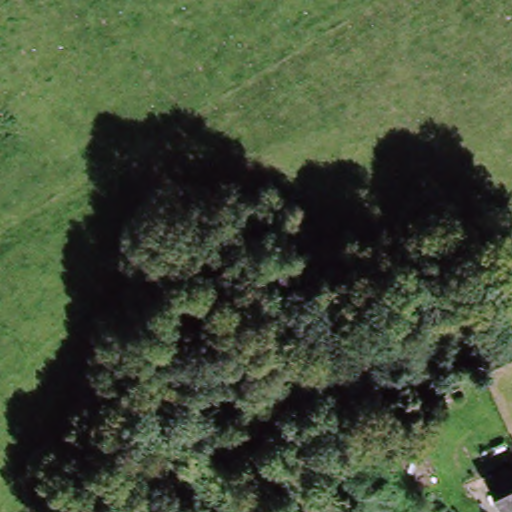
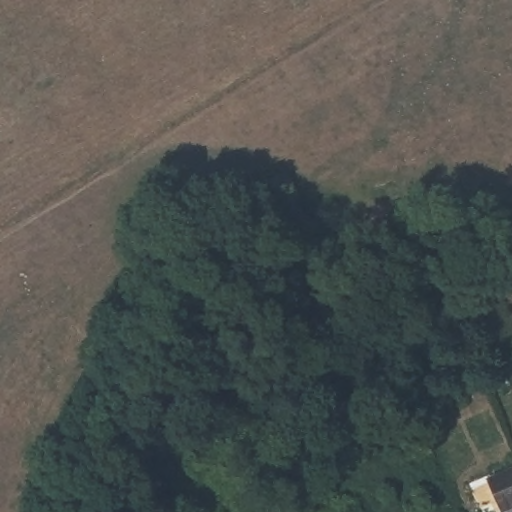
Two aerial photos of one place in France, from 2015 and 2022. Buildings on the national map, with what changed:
unchanged [(494,512),(485,491),(512,478),(512,512),(494,512)]

